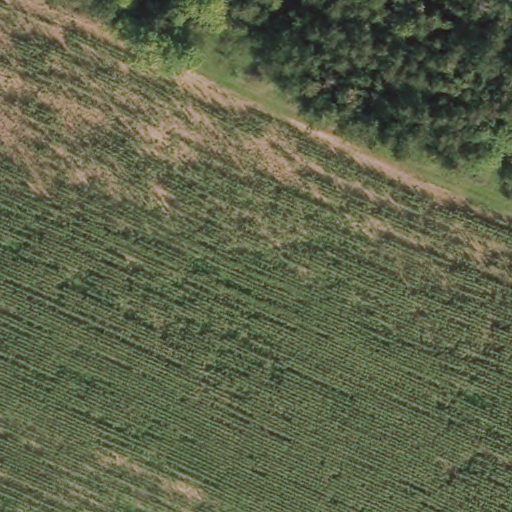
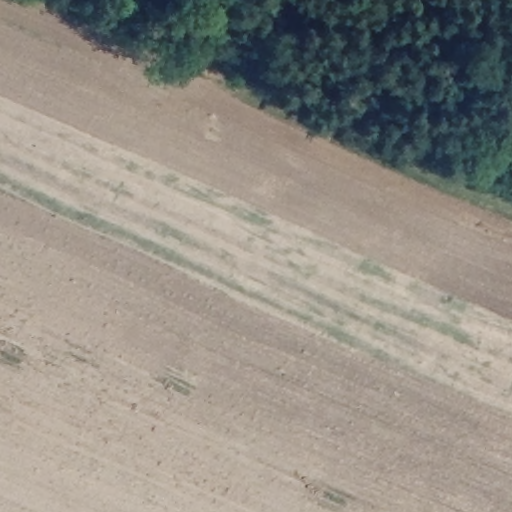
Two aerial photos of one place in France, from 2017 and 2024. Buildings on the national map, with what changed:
unchanged [(249,35),(271,41),(259,85),(238,77),(249,35)]

